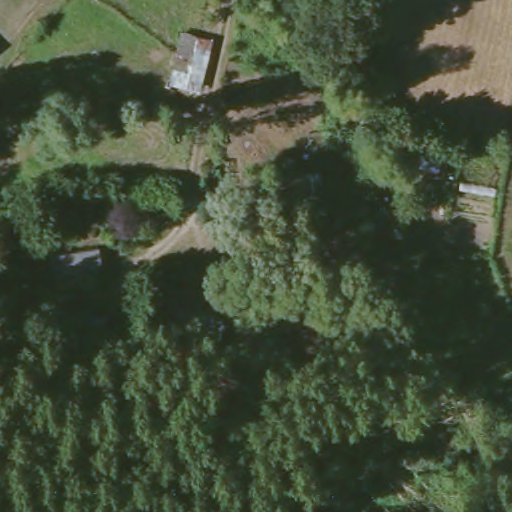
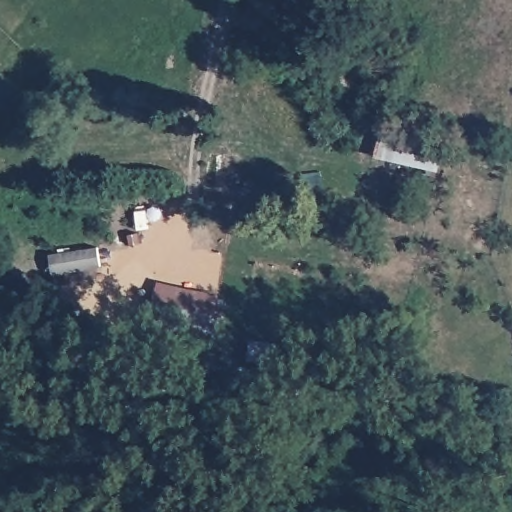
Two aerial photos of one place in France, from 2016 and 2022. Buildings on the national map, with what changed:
unchanged [(213,35),(199,94),(163,85),(177,26),(213,35)]
unchanged [(380,129),(439,143),(433,171),(373,155),(380,129)]
unchanged [(78,286),(57,288),(55,278),(52,278),(50,257),(98,250),(101,270),(76,272),(78,286)]
unchanged [(212,292),(210,311),(221,312),(215,342),(141,331),(155,281),(212,292)]

